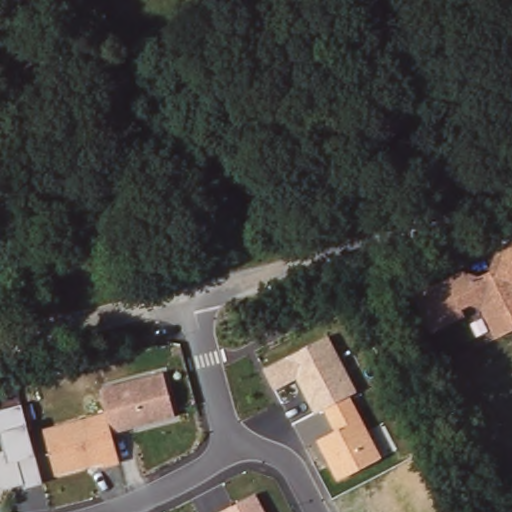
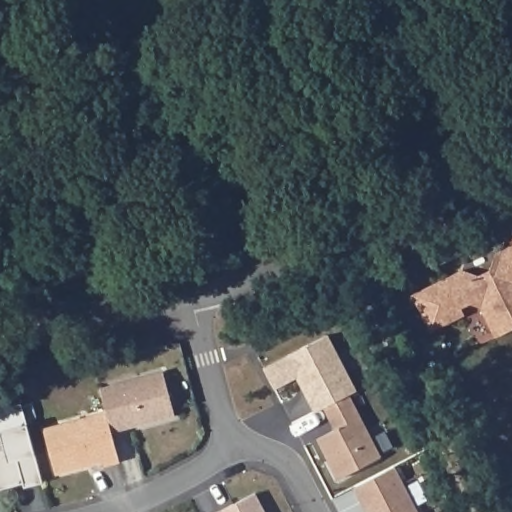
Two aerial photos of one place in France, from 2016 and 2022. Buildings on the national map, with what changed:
unchanged [(484,300),(464,308),(467,318),(430,330),(415,291),(466,268),(483,275),(496,271),(501,254),(512,248),(512,332),(503,336),(484,300)]
unchanged [(296,377),(274,389),(262,365),(330,333),(358,388),(314,412),(296,377)]
unchanged [(41,425),(103,410),(98,386),(165,370),(176,415),(111,431),(119,460),(54,475),(41,425)]
unchanged [(338,480),(319,441),(334,431),(322,408),(349,393),(382,457),(338,480)]
unchanged [(23,403),(42,481),(0,488),(0,408),(23,403)]
new [(396,467),(418,512),(366,512),(354,488),(396,467)]
unchanged [(266,512),(219,512),(256,493),(266,512)]

